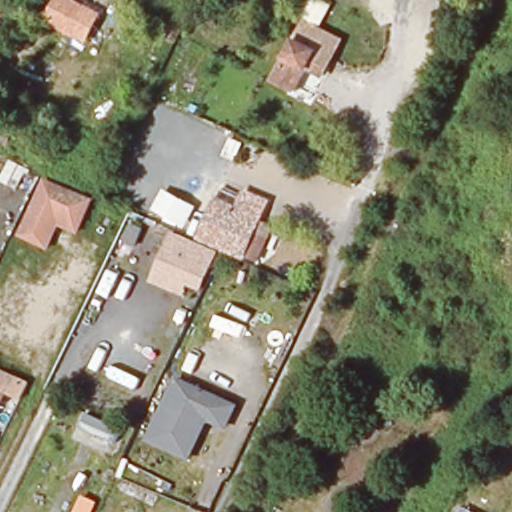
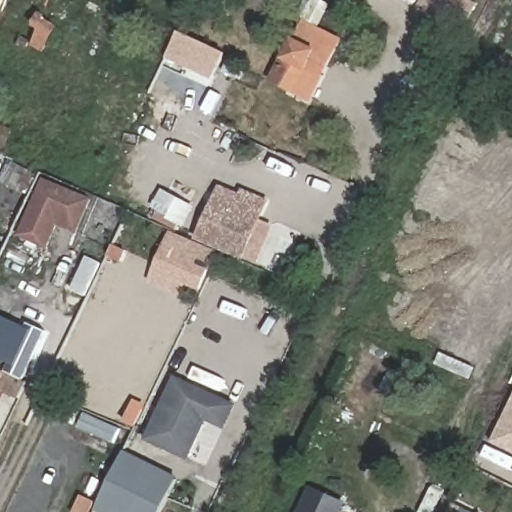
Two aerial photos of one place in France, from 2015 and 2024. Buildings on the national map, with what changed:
new [(423,0),(472,0),(477,3),(460,30),(419,6),(423,0)]
unchanged [(268,81),(280,55),(282,57),(292,39),(302,18),(341,42),(310,103),(268,81)]
new [(225,53),(212,80),(166,59),(179,31),(225,53)]
unchanged [(81,232),(62,225),(49,250),(18,237),(44,177),(92,200),(81,232)]
unchanged [(199,294),(187,288),(181,298),(145,281),(171,230),(195,240),(216,197),(236,205),(245,188),(267,201),(260,218),(275,227),(257,264),(246,258),(243,260),(220,249),(199,294)]
new [(87,297),(72,290),(87,256),(102,263),(87,297)]
new [(27,321),(49,332),(24,381),(5,371),(9,363),(0,359),(0,313),(25,325),(27,321)]
unchanged [(5,395),(0,404),(0,369),(27,383),(24,403),(5,395)]
unchanged [(226,430),(207,421),(190,461),(144,441),(174,376),(237,403),(226,430)]
new [(492,442),(512,400),(512,452),(492,442)]
new [(93,512),(72,512),(81,494),(98,502),(124,450),(177,477),(160,512),(98,512),(94,510),(93,512)]
new [(296,512),(309,486),(347,502),(342,512),(296,512)]

